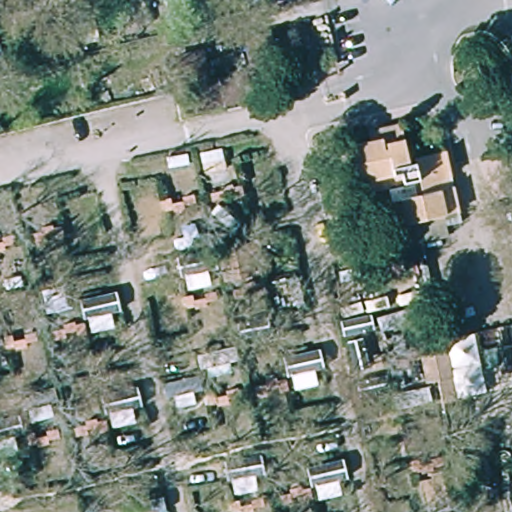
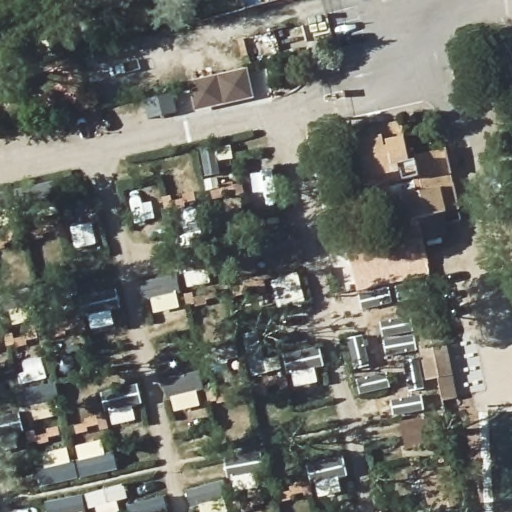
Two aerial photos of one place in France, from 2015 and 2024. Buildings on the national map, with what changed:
new [(252,97),(195,113),(190,87),(247,74),(252,97)]
unchanged [(348,145),(371,140),(370,131),(402,124),(411,163),(417,162),(416,156),(446,150),(449,167),(419,173),(421,179),(360,193),(348,145)]
unchanged [(392,198),(453,186),(459,211),(444,215),(449,235),(419,242),(415,222),(399,225),(392,198)]
unchanged [(428,381),(420,343),(445,338),(453,376),(457,399),(443,402),(439,379),(428,381)]

